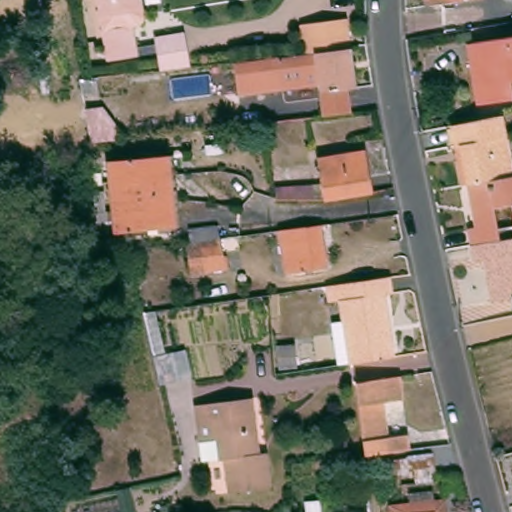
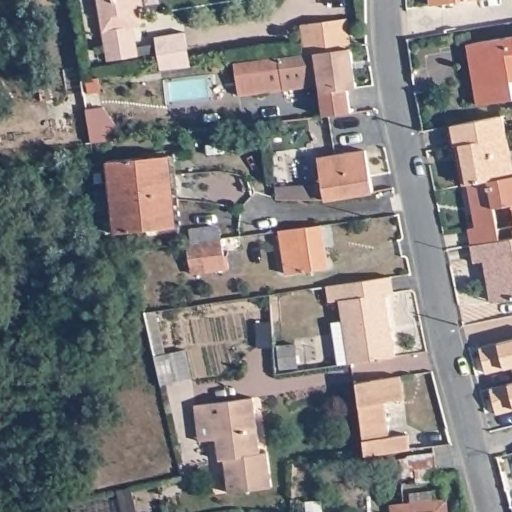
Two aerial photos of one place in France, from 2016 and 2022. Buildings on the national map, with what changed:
unchanged [(143,0),(145,17),(145,22),(144,24),(140,26),(138,27),(135,27),(140,57),(109,61),(98,0),(143,0)]
unchanged [(434,0),(475,0),(435,5),(434,0)]
unchanged [(348,22),(351,43),(306,49),(304,27),(303,21),(348,16),(348,22)]
unchanged [(512,38),(512,101),(481,106),(471,45),(512,38)]
unchanged [(357,111),(335,114),(332,92),(330,79),(247,88),(244,56),(285,51),(288,51),(306,49),(351,43),(362,42),(368,87),(360,88),(362,111),(357,111)]
unchanged [(512,176),(468,185),(463,159),(468,158),(465,142),(457,145),(453,124),(505,117),(512,154),(512,176)]
unchanged [(320,156),(368,149),(373,192),(325,198),(320,156)]
unchanged [(110,164),(172,156),(181,227),(119,234),(110,164)]
unchanged [(468,226),(476,225),(468,185),(512,176),(512,208),(495,211),(500,231),(512,228),(512,242),(472,250),(468,226)]
unchanged [(273,201),(272,188),(308,186),(310,200),(273,201)]
unchanged [(326,225),(332,266),(299,271),(291,273),(286,231),(295,230),(326,225)]
unchanged [(190,244),(225,239),(230,271),(207,274),(206,263),(193,266),(190,244)]
unchanged [(495,284),(497,283),(493,263),(476,266),(472,250),(512,242),(512,304),(500,306),(495,284)]
unchanged [(398,275),(400,291),(391,293),(400,356),(361,361),(351,363),(340,284),(350,282),(398,275)]
unchanged [(146,319),(161,317),(166,344),(176,350),(191,349),(195,380),(163,388),(146,319)]
new [(486,373),(480,347),(497,343),(512,339),(512,366),(505,368),(486,373)]
unchanged [(355,381),(400,374),(405,398),(391,401),(396,434),(408,432),(410,446),(365,453),(355,381)]
new [(489,388),(507,385),(512,384),(512,410),(497,414),(489,388)]
unchanged [(252,399),(260,455),(267,455),(271,488),(228,494),(223,461),(218,462),(207,463),(201,420),(207,420),(205,405),(252,399)]
unchanged [(448,512),(412,512),(411,506),(436,504),(447,502),(448,512)]

